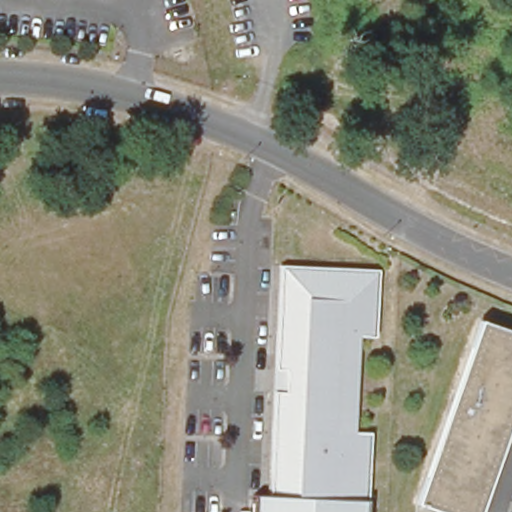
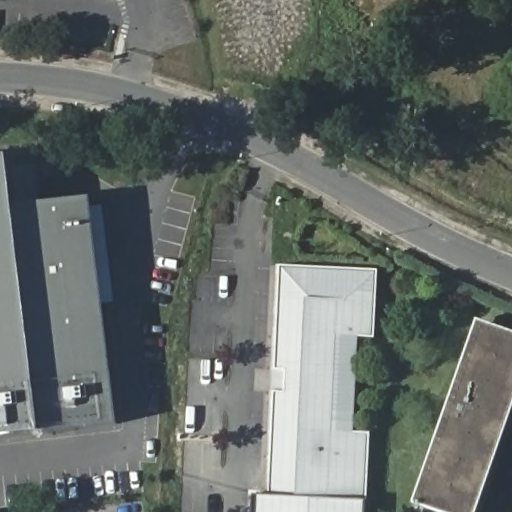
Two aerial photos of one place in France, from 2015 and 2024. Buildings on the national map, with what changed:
new [(0,158),(7,157),(14,208),(91,199),(117,425),(41,432),(0,438),(0,158)]
unchanged [(372,337),(357,341),(355,427),(367,433),(366,463),(364,512),(252,512),(253,496),(268,497),(270,475),(273,393),(285,394),(286,371),(275,371),(280,267),(375,271),(372,337)]
unchanged [(503,398),(507,400),(496,428),(492,427),(476,466),(459,512),(453,512),(417,501),(428,472),(425,465),(470,351),(476,350),(488,320),(512,329),(512,376),(503,398)]

